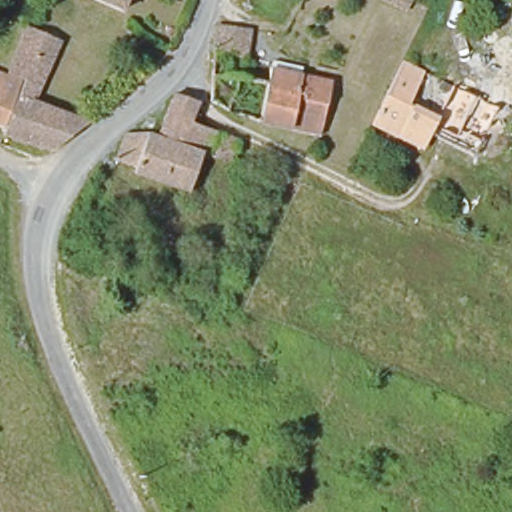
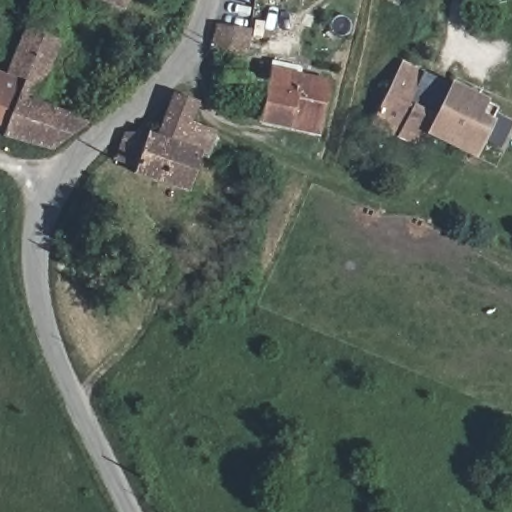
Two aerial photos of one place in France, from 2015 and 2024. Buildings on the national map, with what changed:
unchanged [(86,0),(131,0),(123,16),(86,0)]
unchanged [(388,0),(401,0),(397,7),(387,1),(388,0)]
unchanged [(243,66),(241,80),(211,75),(213,50),(212,39),(216,27),(249,33),(245,55),(243,66)]
unchanged [(21,143),(4,137),(25,82),(7,75),(26,30),(59,44),(36,105),(21,143)]
unchanged [(270,72),(271,65),(301,70),(299,79),(330,85),(319,140),(260,124),(267,86),(270,72)]
unchanged [(400,65),(423,76),(417,88),(409,107),(435,120),(427,137),(421,150),(371,126),(395,76),(400,65)]
unchanged [(0,129),(0,77),(19,85),(3,130),(0,129)]
new [(435,120),(451,83),(486,100),(496,108),(493,120),(474,160),(427,137),(435,120)]
unchanged [(165,118),(175,96),(198,105),(190,127),(215,136),(209,157),(201,155),(189,194),(133,175),(135,169),(117,162),(126,137),(146,136),(156,140),(165,118)]
unchanged [(53,153),(21,143),(36,105),(90,125),(53,153)]

